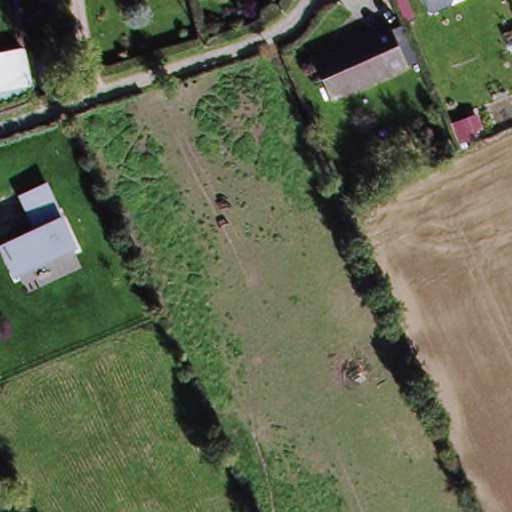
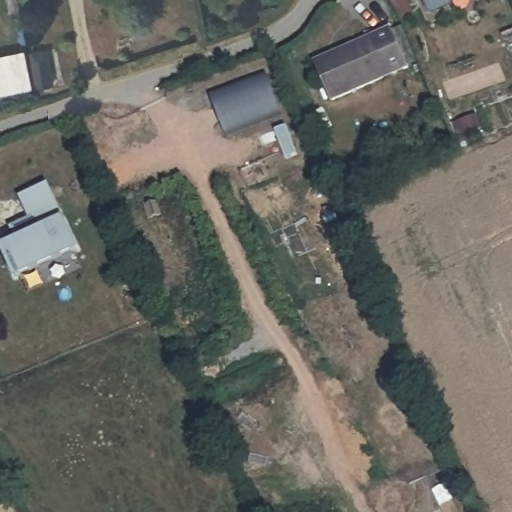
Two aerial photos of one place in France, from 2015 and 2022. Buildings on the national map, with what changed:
unchanged [(390,32),(407,70),(332,103),(315,65),(390,32)]
unchanged [(27,50),(33,89),(0,100),(0,55),(27,50)]
unchanged [(62,92),(45,98),(37,62),(53,59),(62,92)]
new [(267,71),(282,112),(225,135),(208,94),(267,71)]
new [(477,126),(465,132),(467,138),(457,143),(447,123),(470,112),(477,126)]
unchanged [(16,280),(3,251),(40,235),(37,224),(25,200),(48,190),(59,214),(77,254),(16,280)]

